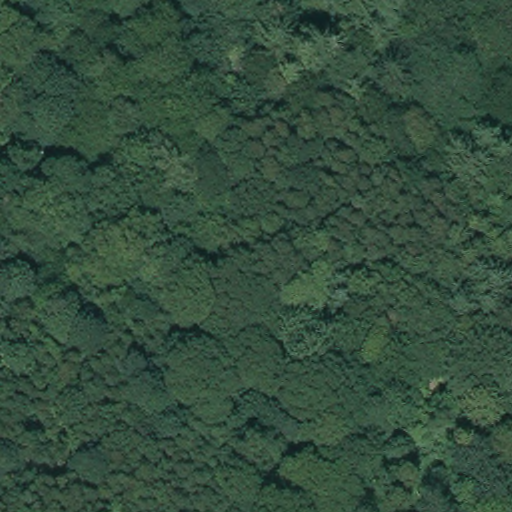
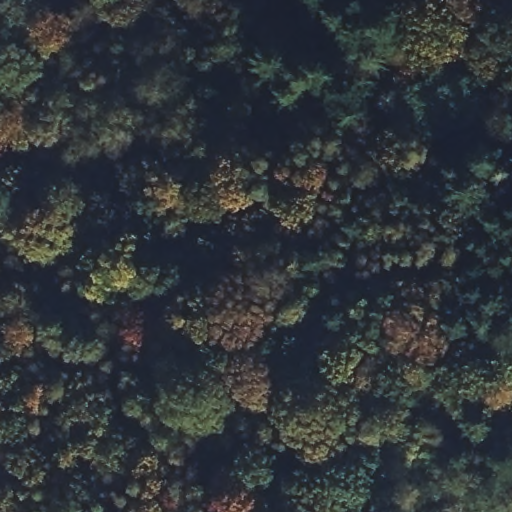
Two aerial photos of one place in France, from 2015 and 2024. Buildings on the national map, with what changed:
unchanged [(470,442),(498,419),(510,434),(482,457),(470,442)]

